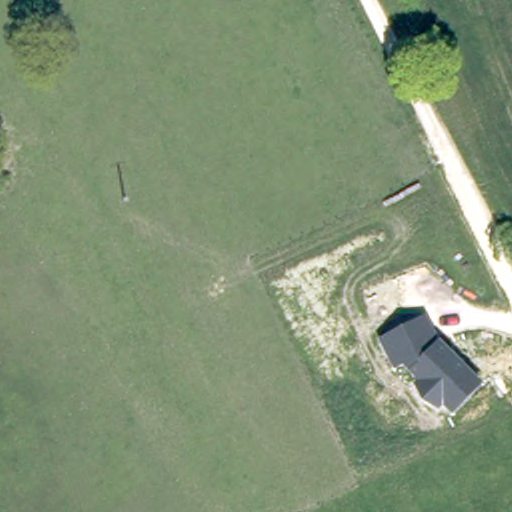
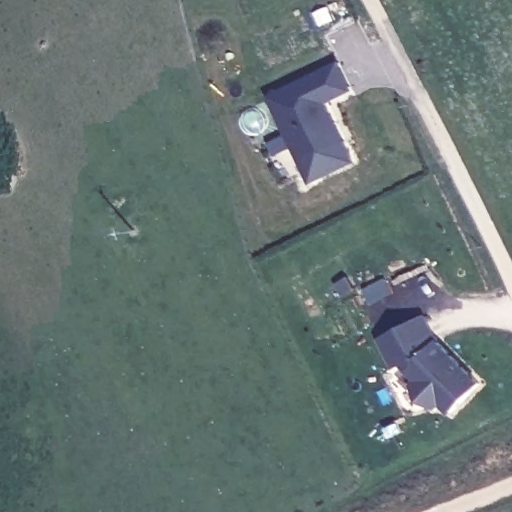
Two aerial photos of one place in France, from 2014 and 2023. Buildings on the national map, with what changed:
new [(353,91),(329,103),(348,142),(303,164),(268,96),(339,60),(353,91)]
unchanged [(437,334),(483,385),(452,416),(443,408),(438,413),(411,383),(415,378),(402,362),(395,366),(381,335),(427,315),(437,334)]

